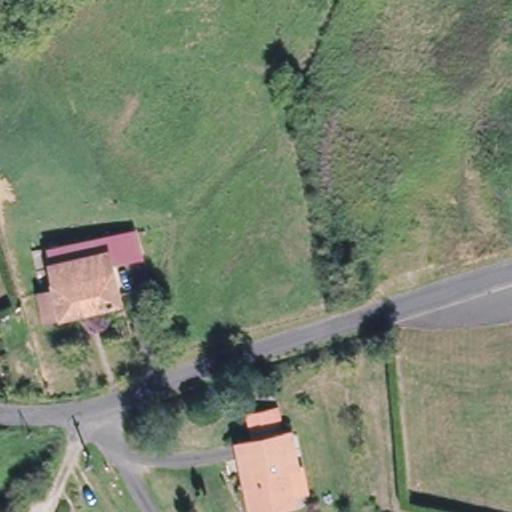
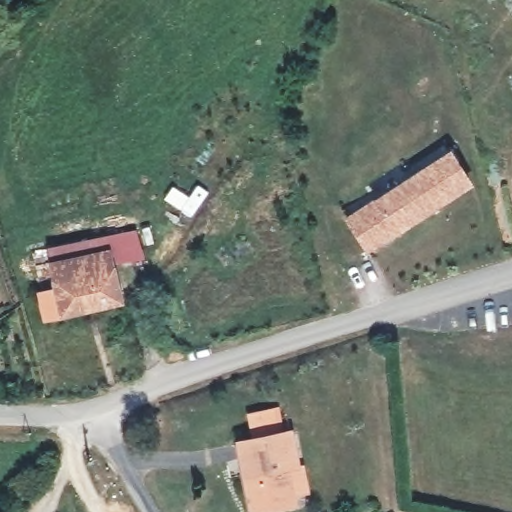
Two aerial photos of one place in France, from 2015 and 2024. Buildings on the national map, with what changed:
new [(474,185),(394,235),(367,253),(344,216),(370,200),(450,148),(474,185)]
unchanged [(133,225),(138,254),(110,262),(117,301),(47,315),(40,288),(59,283),(49,246),(133,225)]
unchanged [(256,512),(241,442),(261,438),(256,413),(276,409),(279,433),(297,430),(305,476),(290,479),(295,504),(256,512)]

